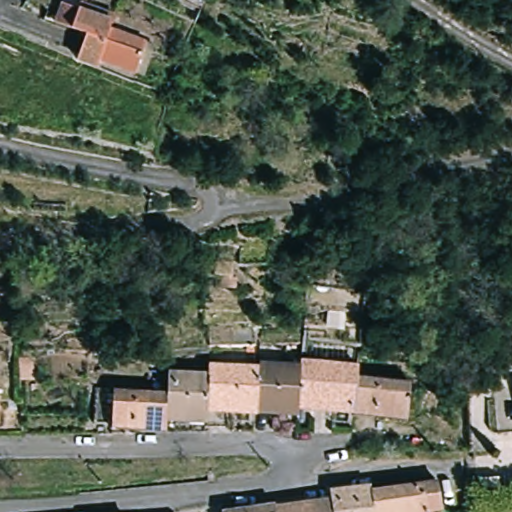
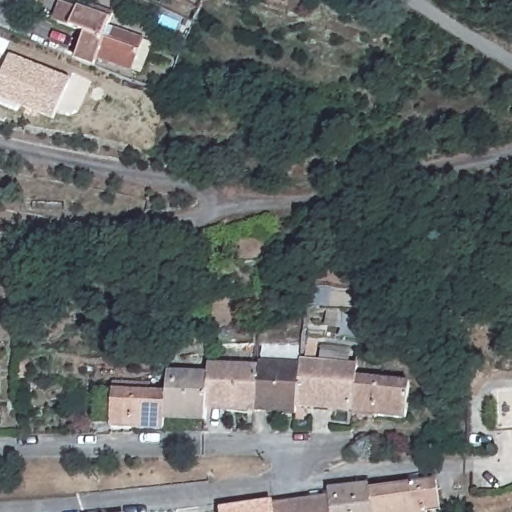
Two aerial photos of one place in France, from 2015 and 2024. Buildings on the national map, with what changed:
unchanged [(115,20),(112,28),(145,41),(139,71),(102,63),(101,69),(77,64),(86,33),(57,23),(63,1),(115,20)]
new [(54,120),(0,99),(0,80),(10,54),(71,78),(54,120)]
unchanged [(304,371),(305,364),(361,370),(360,380),(358,411),(301,406),(302,403),(304,371)]
unchanged [(1,421),(0,420),(0,365),(1,366),(1,421)]
unchanged [(302,403),(301,406),(301,414),(260,410),(262,387),(264,373),(264,367),(304,371),(302,403)]
unchanged [(262,387),(260,410),(210,406),(213,375),(214,368),(264,373),(262,387)]
unchanged [(210,406),(208,419),(168,416),(170,392),(172,372),(213,375),(210,406)]
unchanged [(412,420),(357,415),(358,411),(360,380),(415,385),(412,420)]
unchanged [(114,416),(97,414),(99,386),(170,392),(168,416),(167,430),(140,427),(113,425),(114,416)]
unchanged [(222,508),(335,496),(333,486),(372,482),(373,490),(441,482),(445,512),(223,512),(222,508)]

